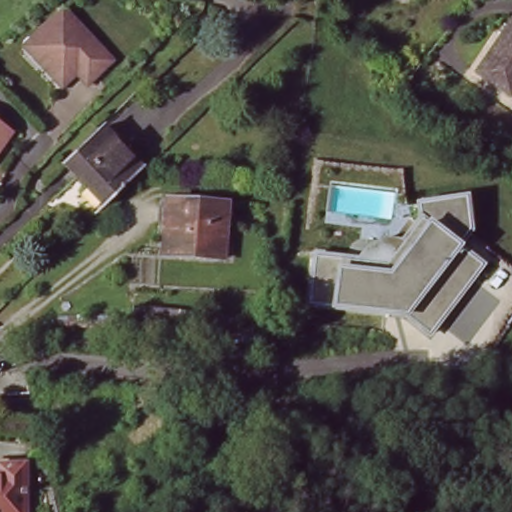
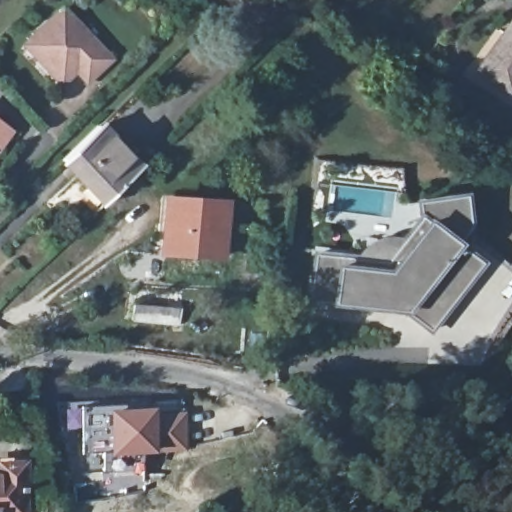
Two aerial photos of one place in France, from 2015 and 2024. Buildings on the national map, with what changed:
unchanged [(36,55),(24,41),(61,5),(111,55),(88,78),(76,66),(66,76),(62,80),(36,55)]
unchanged [(478,70),(512,21),(512,91),(511,92),(478,70)]
unchanged [(121,187),(105,203),(63,160),(97,127),(139,170),(121,187)]
unchanged [(11,136),(0,151),(0,128),(11,136)]
unchanged [(476,234),(465,244),(485,262),(434,331),(409,315),(306,303),(314,250),(351,255),(358,241),(373,234),(387,230),(402,235),(408,239),(425,221),(417,199),(465,190),(476,234)]
unchanged [(225,206),(222,257),(165,253),(167,202),(225,206)]
unchanged [(178,323),(165,322),(134,320),(135,306),(165,309),(180,310),(178,323)]
unchanged [(265,350),(256,356),(236,359),(235,334),(267,332),(265,350)]
unchanged [(30,390),(33,422),(2,424),(0,393),(30,390)]
new [(108,410),(155,410),(185,410),(186,453),(155,455),(142,455),(145,470),(104,473),(102,453),(85,453),(81,407),(108,410)]
unchanged [(22,463),(25,512),(0,512),(0,464),(22,463)]

